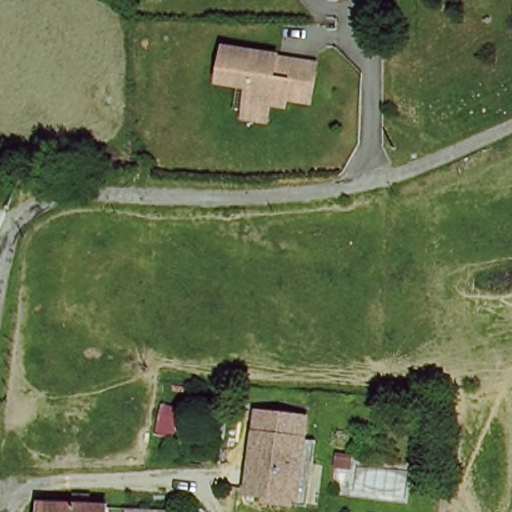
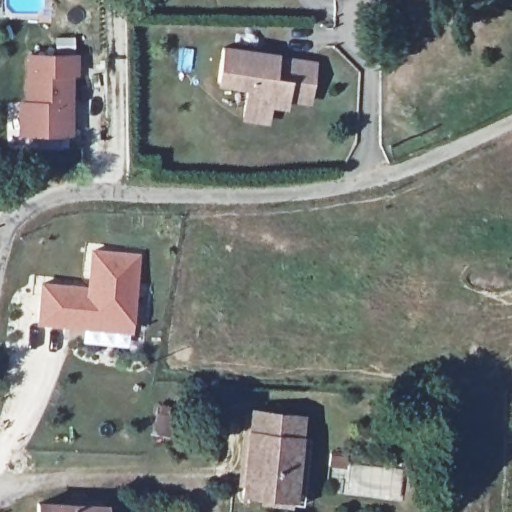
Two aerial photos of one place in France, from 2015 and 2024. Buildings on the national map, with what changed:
unchanged [(242,121),(245,111),(248,99),(220,91),(231,46),(281,59),(276,76),(289,80),(295,61),(318,69),(309,109),(289,103),(286,113),(272,109),(269,118),(267,126),(242,121)]
new [(16,100),(23,101),(24,54),(79,54),(79,76),(74,75),(72,136),(15,135),(16,100)]
new [(85,288),(87,252),(137,257),(129,337),(35,330),(39,285),(85,288)]
unchanged [(246,473),(253,414),(306,420),(297,491),(261,487),(262,476),(246,473)]
unchanged [(102,504),(102,512),(34,512),(35,498),(102,504)]

